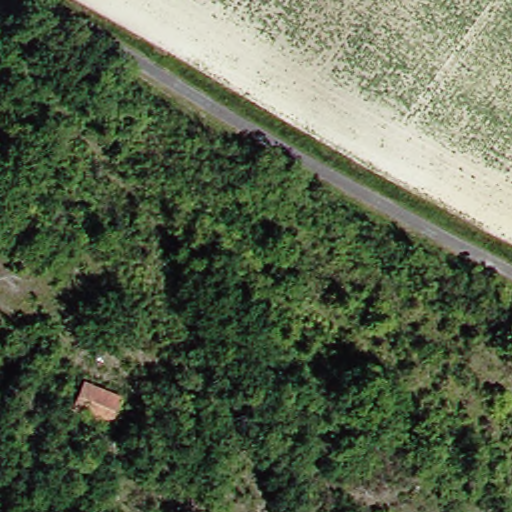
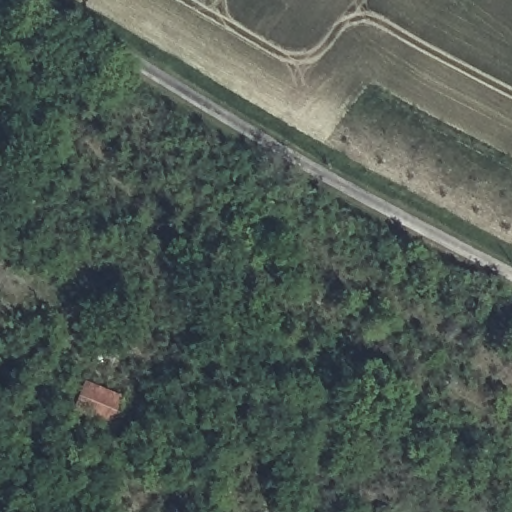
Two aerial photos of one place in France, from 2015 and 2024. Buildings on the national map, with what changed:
unchanged [(114,398),(101,427),(63,410),(76,381),(114,398)]

